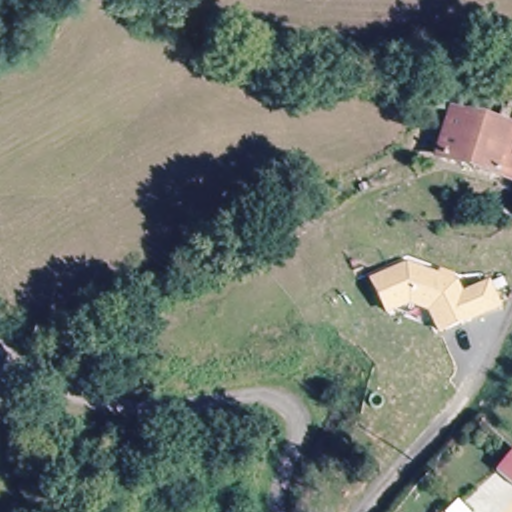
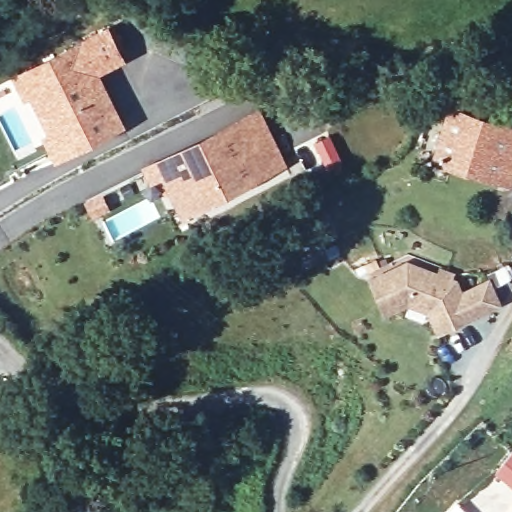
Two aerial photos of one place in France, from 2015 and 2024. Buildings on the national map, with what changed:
new [(127,61),(101,72),(127,127),(56,162),(43,136),(51,132),(34,97),(26,101),(13,74),(108,26),(127,61)]
new [(290,165),(184,218),(162,178),(152,184),(143,166),(260,107),(290,165)]
unchanged [(454,111),(512,130),(512,180),(440,157),(454,111)]
unchanged [(490,279),(501,307),(438,334),(429,313),(409,306),(387,315),(369,278),(407,262),(438,272),(440,267),(456,274),(454,277),(458,280),(463,291),(490,279)]
unchanged [(512,481),(495,467),(512,447),(512,481)]

